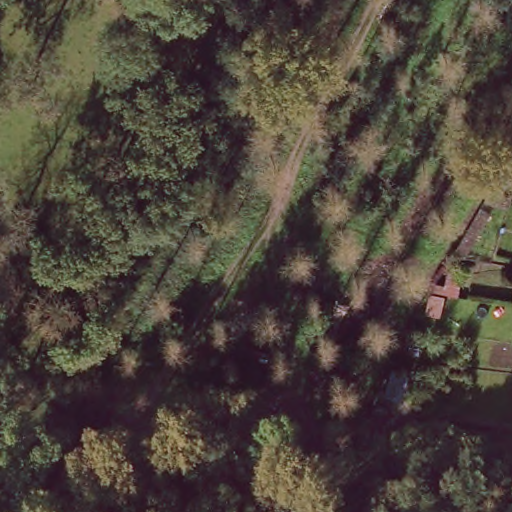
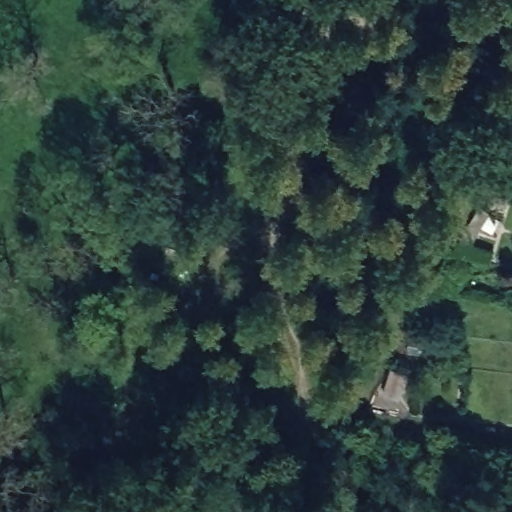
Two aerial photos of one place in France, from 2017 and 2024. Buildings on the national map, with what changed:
unchanged [(462,269),(457,289),(444,286),(448,266),(462,269)]

